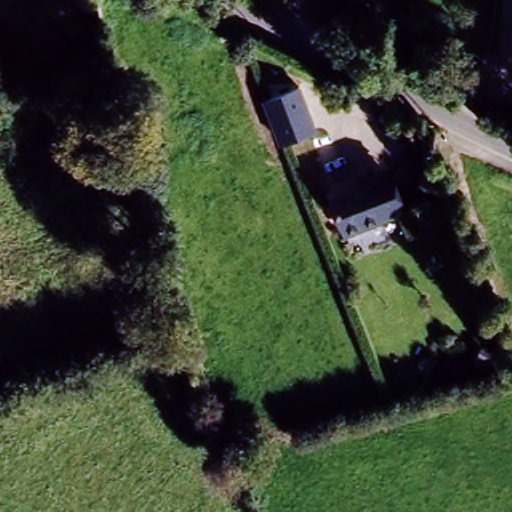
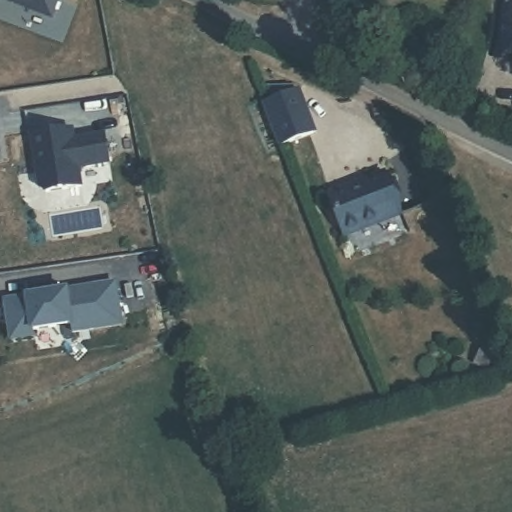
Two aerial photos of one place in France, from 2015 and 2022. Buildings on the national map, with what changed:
new [(50,14),(13,0),(56,0),(50,14)]
unchanged [(512,15),(512,37),(509,37),(512,15)]
unchanged [(301,88),(317,132),(280,147),(262,102),(301,88)]
new [(69,120),(71,131),(102,125),(107,153),(76,158),(79,176),(44,183),(38,179),(29,126),(69,120)]
unchanged [(405,208),(354,231),(334,189),(385,165),(405,208)]
new [(116,284),(122,325),(73,333),(72,324),(34,330),(35,336),(11,340),(6,300),(116,284)]

